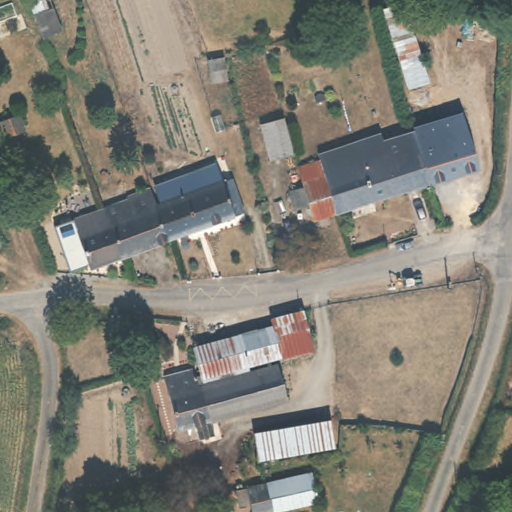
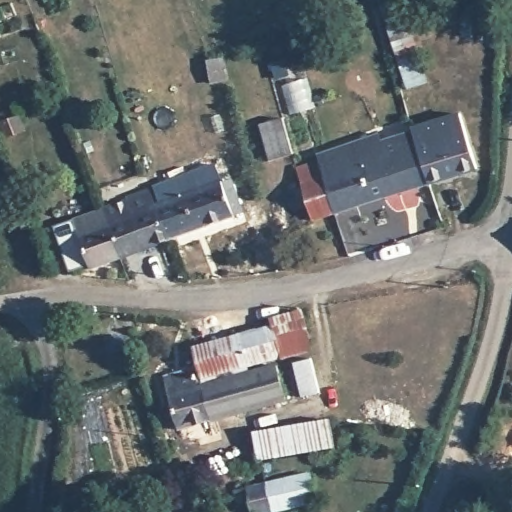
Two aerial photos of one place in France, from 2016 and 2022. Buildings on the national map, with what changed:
unchanged [(402,0),(403,0),(430,78),(406,89),(380,8),(402,0)]
unchanged [(403,192),(387,145),(391,144),(389,138),(388,136),(388,133),(389,130),(392,129),(394,128),(397,129),(399,131),(400,134),(403,140),(419,135),(418,130),(446,121),(462,116),(468,135),(479,167),(477,168),(435,182),(403,192)]
unchanged [(284,120),(294,155),(272,161),(262,126),(284,120)]
unchanged [(384,136),(387,145),(403,192),(377,201),(358,144),(384,136)]
unchanged [(318,157),(358,144),(377,201),(337,214),(320,162),(318,157)]
unchanged [(320,162),(337,214),(316,221),(312,208),(300,212),(294,194),(305,190),(299,169),(320,162)]
unchanged [(216,166),(221,180),(233,213),(194,227),(178,179),(216,166)]
unchanged [(160,202),(155,187),(178,179),(194,227),(164,237),(152,204),(160,202)]
unchanged [(146,188),(152,204),(164,237),(144,244),(127,198),(126,195),(146,188)]
unchanged [(127,198),(144,244),(117,254),(99,208),(127,198)]
unchanged [(55,225),(70,220),(70,218),(99,208),(117,254),(88,264),(86,258),(70,264),(55,225)]
unchanged [(300,311),(309,341),(275,351),(266,321),(300,311)]
unchanged [(266,321),(275,351),(238,362),(228,333),(266,321)]
unchanged [(228,333),(238,362),(198,375),(187,345),(228,333)]
unchanged [(278,358),(288,391),(242,405),(177,426),(174,419),(163,371),(186,366),(192,384),(278,358)]
unchanged [(261,461),(253,433),(326,413),(334,441),(265,460),(261,461)]
unchanged [(315,501),(289,509),(278,512),(253,512),(250,502),(236,506),(232,498),(232,491),(264,482),(307,470),(315,501)]

